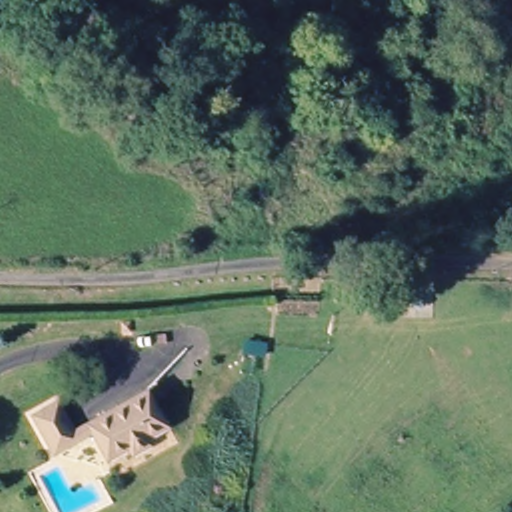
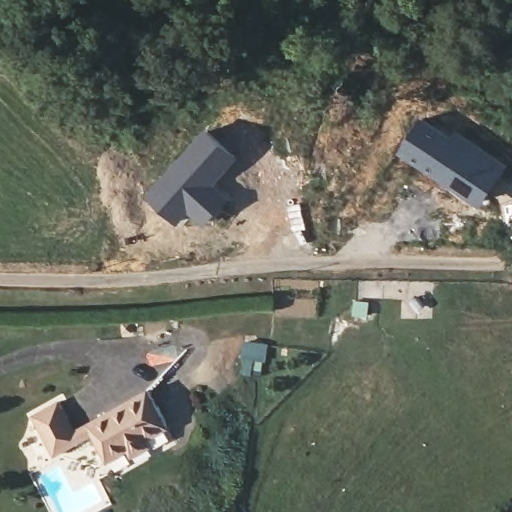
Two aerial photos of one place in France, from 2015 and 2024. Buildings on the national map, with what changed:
new [(422,117),(452,134),(456,128),(510,164),(479,209),(397,156),(422,117)]
new [(206,127),(240,158),(217,183),(232,199),(204,228),(190,216),(178,227),(144,197),(206,127)]
unchanged [(151,441),(156,451),(135,460),(131,452),(110,462),(95,435),(54,455),(36,415),(60,402),(71,423),(148,386),(172,432),(151,441)]

